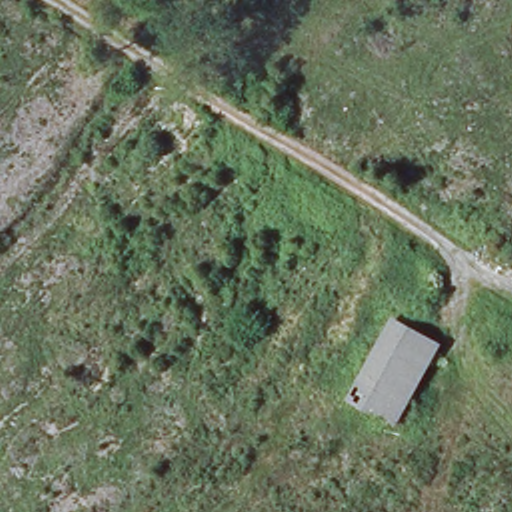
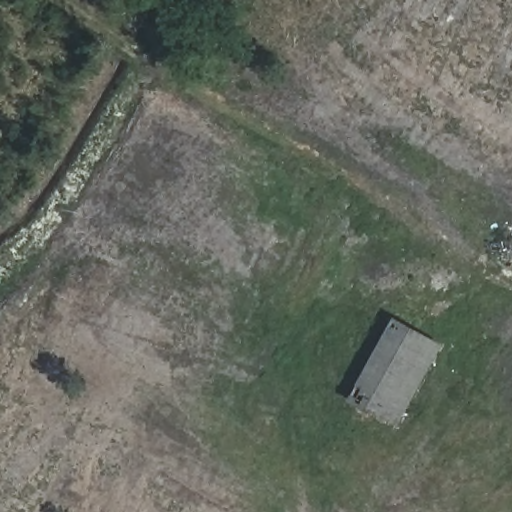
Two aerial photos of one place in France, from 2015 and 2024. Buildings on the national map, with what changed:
unchanged [(398,434),(345,403),(395,318),(444,347),(398,434)]

